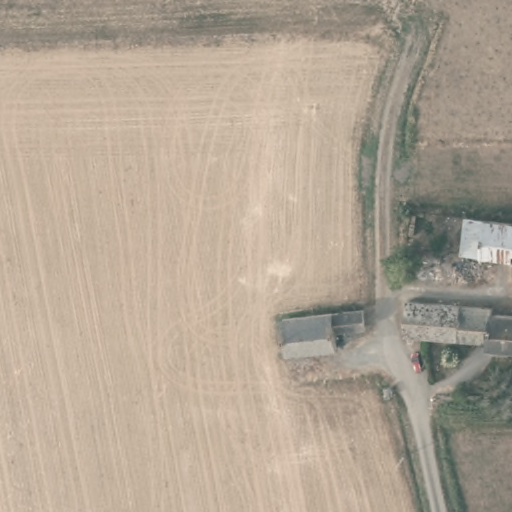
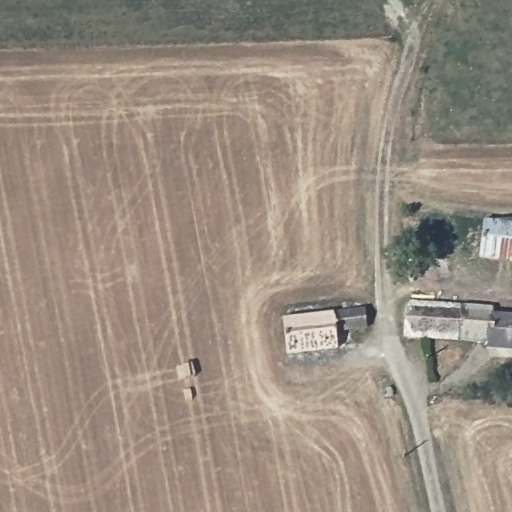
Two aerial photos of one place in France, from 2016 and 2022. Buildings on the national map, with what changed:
unchanged [(478,219),(512,223),(512,260),(475,256),(478,219)]
unchanged [(512,338),(405,329),(406,306),(407,294),(494,300),(495,308),(512,310),(512,338)]
unchanged [(337,344),(338,348),(285,352),(282,318),(364,310),(368,341),(337,344)]

